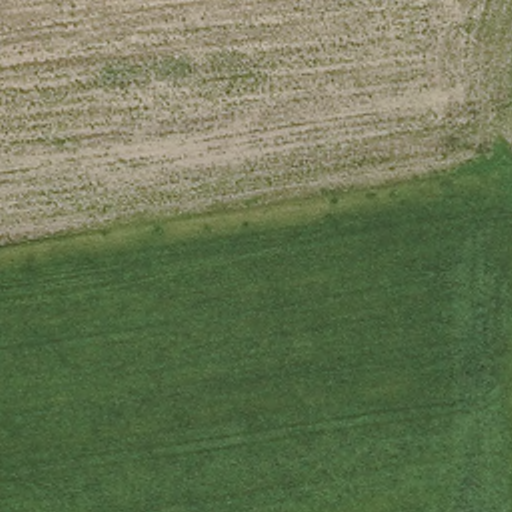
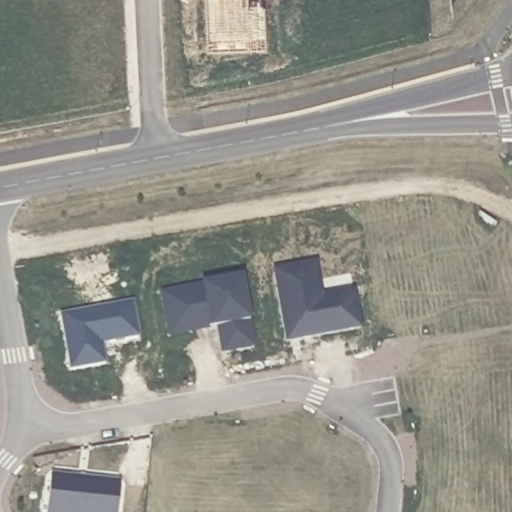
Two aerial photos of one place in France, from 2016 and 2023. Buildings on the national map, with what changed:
new [(316,263),(321,296),(354,291),(360,328),(287,341),(274,270),(316,263)]
new [(167,327),(161,293),(241,278),(254,348),(221,353),(217,328),(210,329),(169,337),(167,327)]
new [(132,303),(138,338),(101,344),(105,364),(71,370),(61,316),(132,303)]
new [(120,483),(117,512),(47,512),(51,476),(120,483)]

